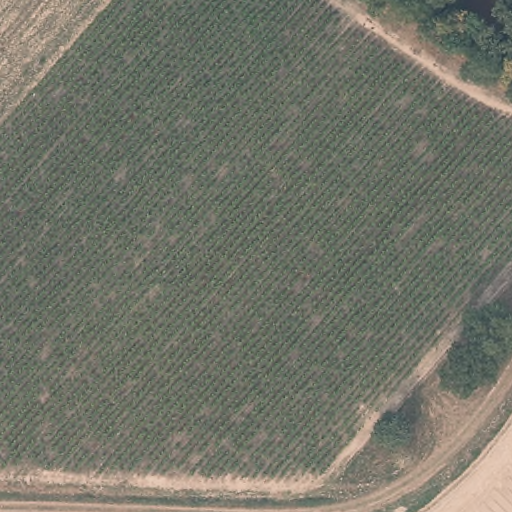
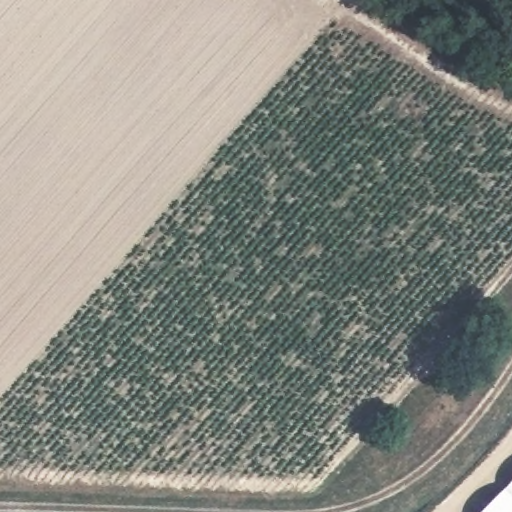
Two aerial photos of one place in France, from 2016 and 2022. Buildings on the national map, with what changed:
new [(512,481),(512,512),(481,512),(512,481)]

